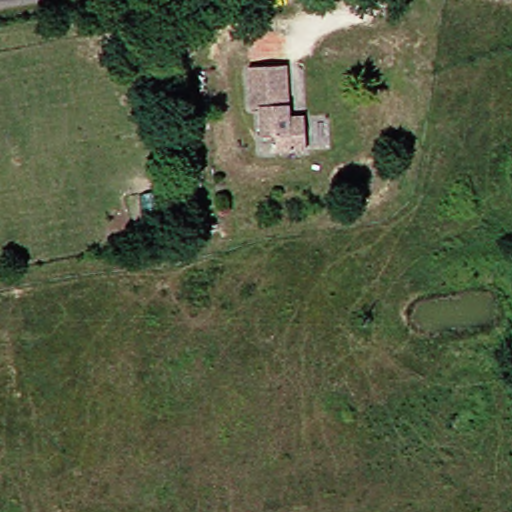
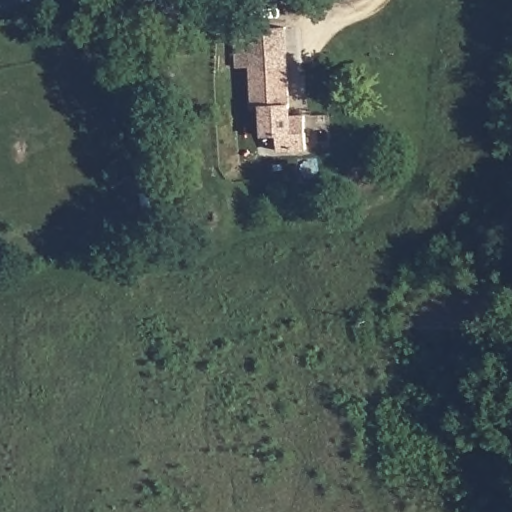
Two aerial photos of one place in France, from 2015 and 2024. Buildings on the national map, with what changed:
unchanged [(287,108),(297,107),(305,147),(274,152),(272,138),(258,140),(255,111),(245,112),(240,74),(281,69),(287,108)]

